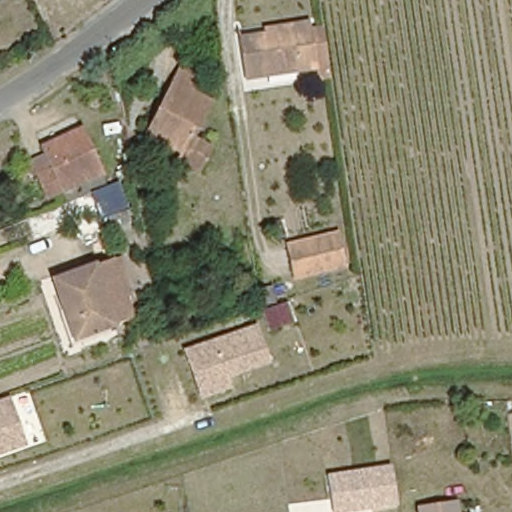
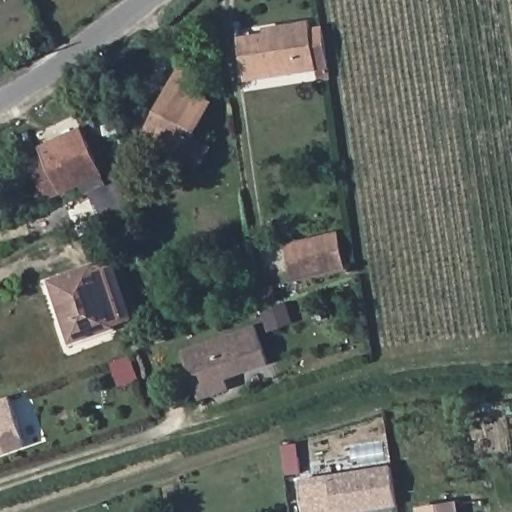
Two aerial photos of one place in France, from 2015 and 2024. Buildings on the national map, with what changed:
unchanged [(305,24),(312,73),(244,82),(238,41),(262,37),(289,34),(288,26),(305,24)]
unchanged [(212,101),(194,137),(215,148),(200,177),(179,167),(183,157),(156,142),(148,139),(165,107),(177,84),(212,101)]
unchanged [(35,172),(50,164),(42,145),(81,129),(98,169),(45,194),(35,172)]
unchanged [(299,272),(294,245),(344,237),(347,263),(299,272)]
unchanged [(130,319),(72,341),(52,282),(109,261),(130,319)]
unchanged [(270,366),(227,380),(231,392),(200,403),(183,350),(257,326),(270,366)]
unchanged [(27,445),(0,455),(0,398),(7,396),(27,445)]
unchanged [(391,465),(398,505),(355,512),(333,512),(333,508),(310,512),(301,512),(298,487),(328,481),(327,475),(391,465)]
unchanged [(445,506),(446,512),(416,512),(416,510),(445,506)]

